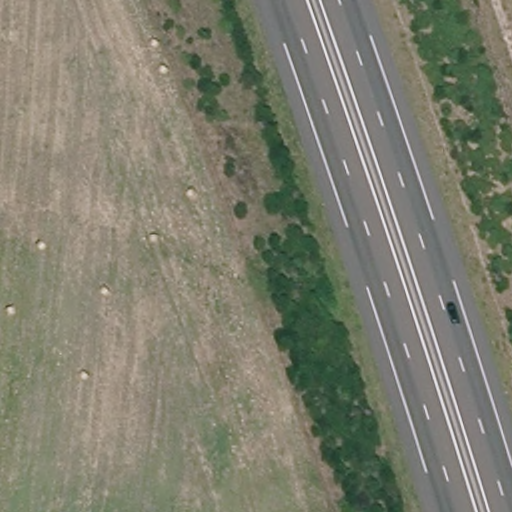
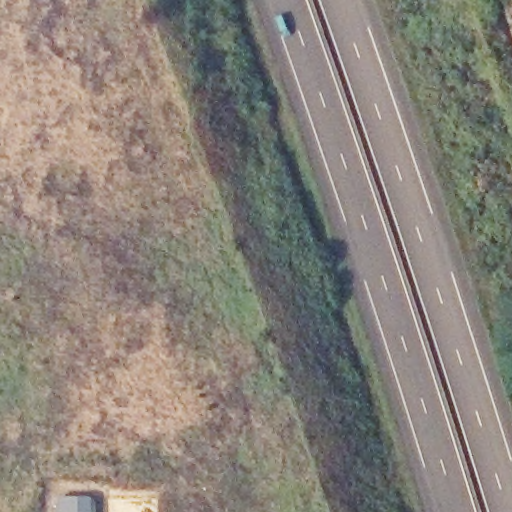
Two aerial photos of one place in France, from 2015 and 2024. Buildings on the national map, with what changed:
new [(95,498),(95,512),(61,512),(61,497),(95,498)]

